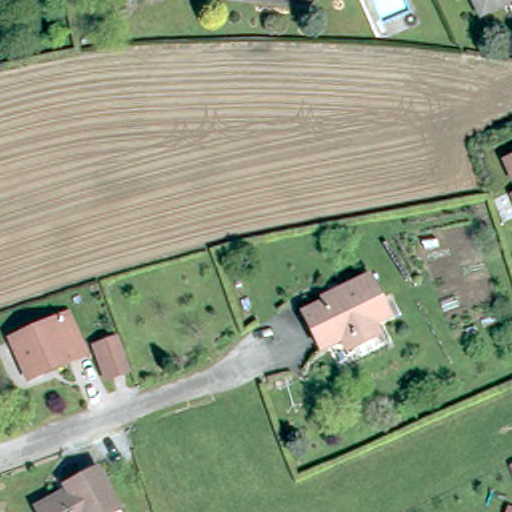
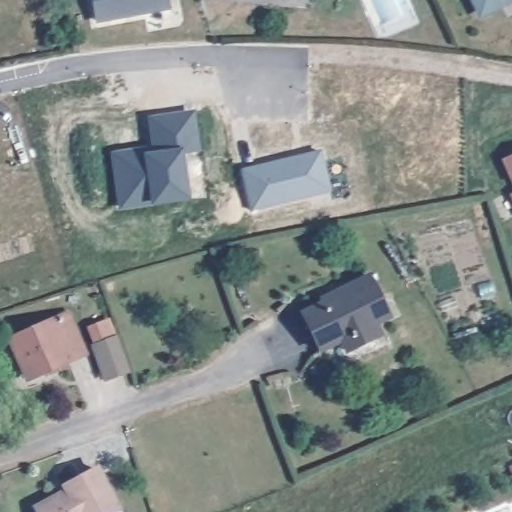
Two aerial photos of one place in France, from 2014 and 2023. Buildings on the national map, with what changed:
new [(175,6),(102,20),(99,0),(173,0),(175,6)]
unchanged [(476,0),(508,0),(482,12),(476,0)]
new [(118,196),(113,155),(136,152),(146,151),(147,157),(155,156),(150,120),(192,114),(197,150),(180,153),(186,199),(143,205),(120,208),(118,196)]
new [(323,150),(333,190),(253,209),(243,169),(323,150)]
unchanged [(512,154),(512,170),(506,156),(512,154)]
unchanged [(370,270),(391,312),(376,319),(381,328),(367,335),(342,288),(340,283),(370,270)]
unchanged [(342,333),(321,343),(302,307),(342,288),(367,335),(360,338),(348,344),(342,333)]
unchanged [(85,353),(27,379),(7,338),(65,313),(85,353)]
unchanged [(106,343),(123,336),(135,366),(118,372),(106,343)]
unchanged [(52,498),(61,493),(58,486),(92,467),(119,512),(31,512),(29,509),(52,496),(52,498)]

